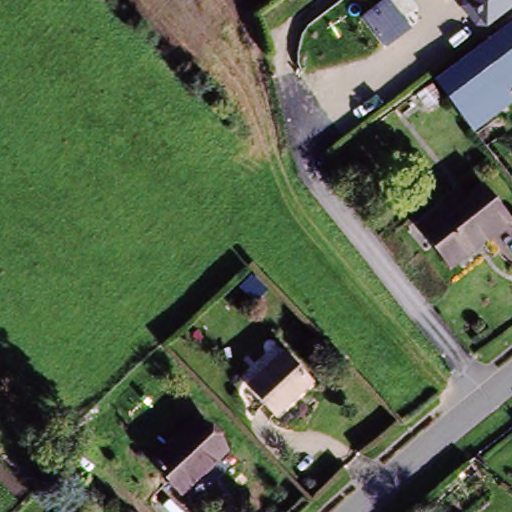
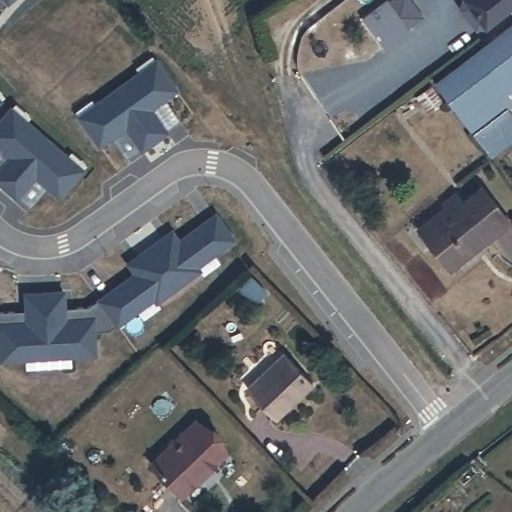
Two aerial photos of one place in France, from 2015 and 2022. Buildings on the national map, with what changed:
new [(11,1),(0,15),(0,0),(12,0),(11,1)]
unchanged [(512,9),(485,27),(474,26),(459,7),(459,0),(512,0),(512,9)]
unchanged [(382,48),(363,22),(393,2),(413,28),(382,48)]
unchanged [(441,83),(512,31),(512,94),(512,106),(479,131),(441,83)]
new [(143,76),(145,80),(161,68),(179,93),(153,112),(170,134),(158,143),(120,92),(143,76)]
new [(101,111),(99,107),(120,92),(158,143),(146,152),(128,129),(103,147),(85,122),(101,111)]
new [(9,115),(24,129),(27,125),(48,143),(5,191),(0,187),(0,175),(13,160),(0,149),(0,126),(9,115)]
new [(48,143),(68,161),(64,164),(80,178),(59,201),(35,180),(16,201),(5,191),(48,143)]
unchanged [(449,201),(464,190),(472,201),(492,187),(512,214),(512,228),(488,247),(483,241),(471,251),(453,265),(428,232),(447,218),(456,211),(449,201)]
new [(146,268),(139,258),(164,241),(171,251),(217,218),(236,244),(199,270),(201,273),(158,304),(156,300),(119,327),(101,301),(146,268)]
new [(250,274),(266,291),(241,315),(224,297),(250,274)]
new [(16,311),(17,323),(29,322),(28,294),(46,293),(50,357),(3,360),(2,337),(0,337),(0,312),(16,311)]
new [(66,293),(67,321),(79,320),(79,309),(91,308),(101,301),(119,327),(111,332),(95,333),(97,354),(50,357),(46,293),(66,293)]
unchanged [(289,355),(319,387),(284,420),(255,388),(289,355)]
unchanged [(192,495),(161,463),(204,421),(236,453),(192,495)]

